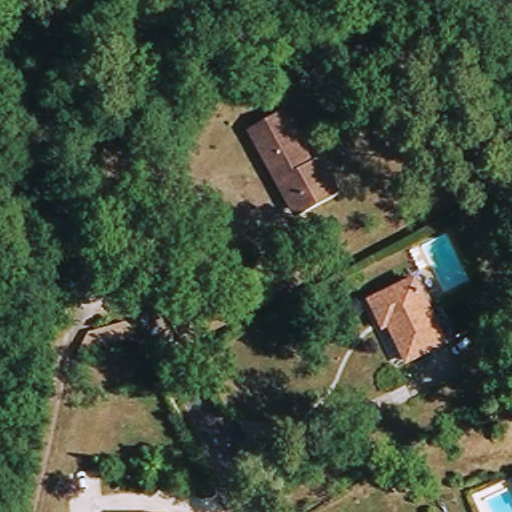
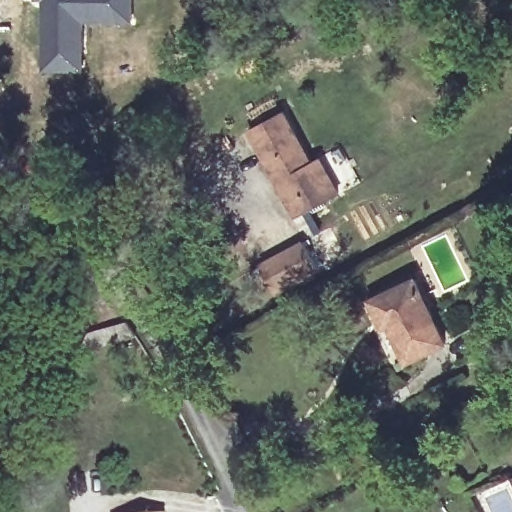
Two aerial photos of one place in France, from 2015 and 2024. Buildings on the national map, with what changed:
new [(134,25),(86,23),(84,71),(42,71),(41,0),(134,0),(134,25)]
unchanged [(285,119),(307,163),(322,156),(342,199),(303,217),(282,174),(271,179),(251,135),(285,119)]
new [(304,242),(318,268),(274,292),(260,265),(304,242)]
unchanged [(411,363),(387,321),(380,325),(368,306),(413,279),(448,341),(411,363)]
new [(89,332),(127,322),(136,335),(80,350),(89,332)]
unchanged [(512,481),(512,487),(510,482),(512,481)]

